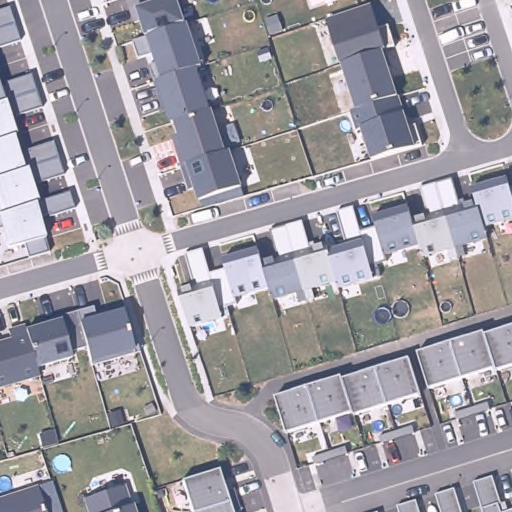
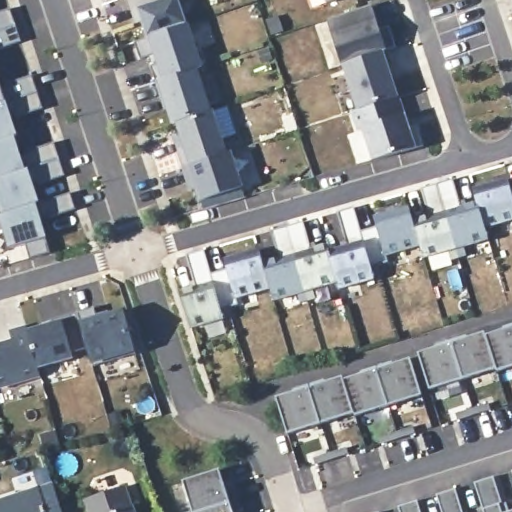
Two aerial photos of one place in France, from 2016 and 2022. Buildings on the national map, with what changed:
unchanged [(202,68),(197,70),(227,154),(230,153),(241,188),(201,202),(176,125),(172,126),(157,80),(162,79),(138,13),(131,15),(125,0),(177,0),(187,26),(202,68)]
unchanged [(324,0),(343,0),(326,7),(324,0)]
unchanged [(385,51),(382,52),(413,149),(371,163),(361,131),(357,133),(352,114),(357,112),(327,19),(372,5),(385,51)]
unchanged [(8,8),(19,39),(0,44),(0,11),(8,8)]
unchanged [(32,75),(42,109),(10,118),(19,151),(52,141),(58,160),(26,170),(0,179),(0,86),(32,75)]
unchanged [(238,299),(240,304),(230,307),(232,314),(189,327),(179,290),(192,285),(184,254),(204,247),(211,271),(224,267),(222,258),(259,246),(264,263),(277,259),(271,231),(302,223),(311,250),(342,240),(335,212),(353,207),(361,233),(376,228),(373,217),(408,207),(412,219),(427,215),(421,189),(455,179),(462,204),(475,200),(472,189),(507,179),(510,189),(512,188),(512,221),(485,229),(488,239),(422,259),(420,249),(367,264),(372,279),(338,289),(337,283),(273,301),(270,289),(238,299)]
unchanged [(136,352),(92,366),(86,348),(71,352),(72,359),(38,370),(40,377),(0,388),(0,345),(27,337),(26,333),(61,322),(59,318),(94,307),(99,319),(122,311),(136,352)]
unchanged [(485,333),(486,335),(512,327),(512,366),(497,371),(496,369),(428,389),(418,354),(485,333)]
unchanged [(275,398),(342,377),(344,380),(410,359),(421,395),(355,416),(355,413),(286,434),(275,398)]
unchanged [(233,512),(191,512),(182,484),(220,471),(233,512)]
unchanged [(52,482),(62,512),(0,512),(0,497),(52,482)]
unchanged [(134,512),(87,512),(83,499),(125,484),(134,512)]

